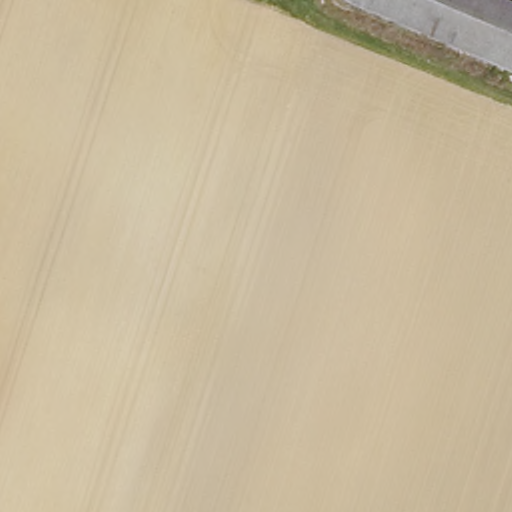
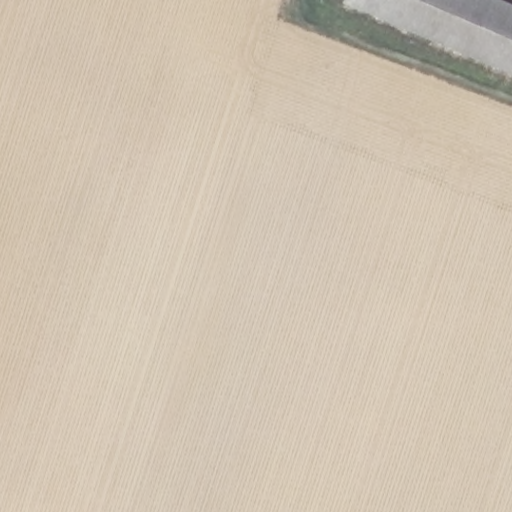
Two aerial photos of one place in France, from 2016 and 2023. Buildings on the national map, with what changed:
unchanged [(349,4),(351,0),(497,0),(512,6),(512,74),(349,4)]

